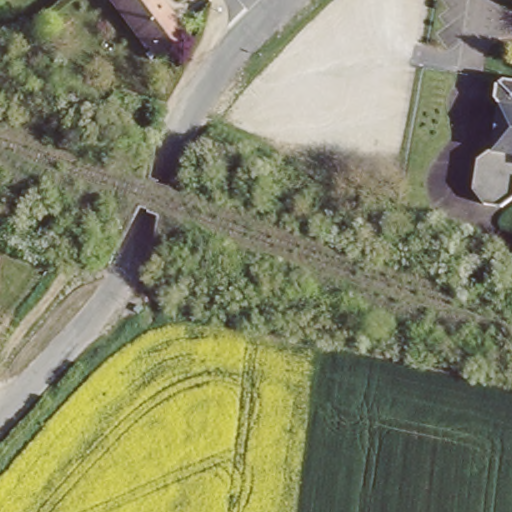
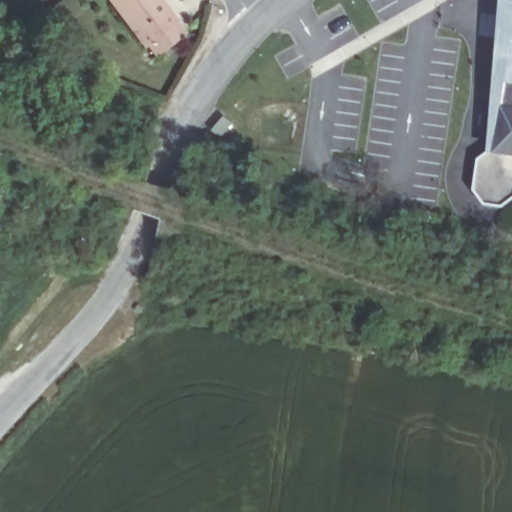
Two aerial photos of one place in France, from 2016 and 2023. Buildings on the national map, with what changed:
unchanged [(153,57),(145,46),(143,48),(107,0),(159,0),(177,22),(175,24),(183,34),(153,57)]
new [(492,84),(499,0),(512,0),(512,79),(499,77),(492,84)]
unchanged [(483,200),(472,187),(475,155),(485,146),(490,147),(495,105),(490,98),(492,84),(499,77),(512,79),(512,193),(500,203),(483,200)]

